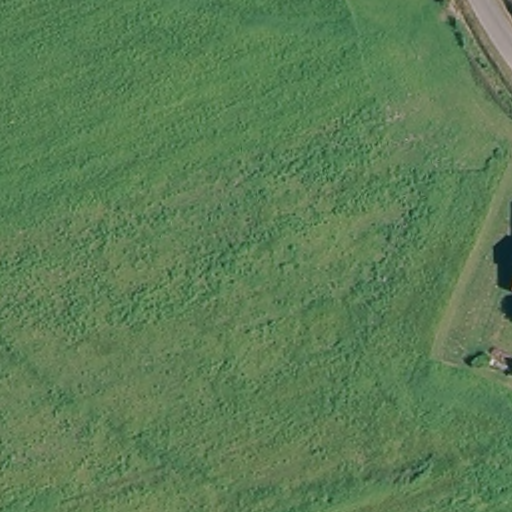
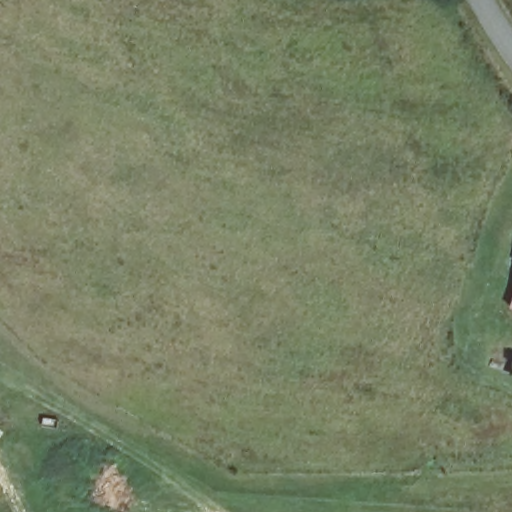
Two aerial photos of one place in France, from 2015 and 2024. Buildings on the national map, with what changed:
unchanged [(512,290),(511,289),(512,287),(512,290)]

